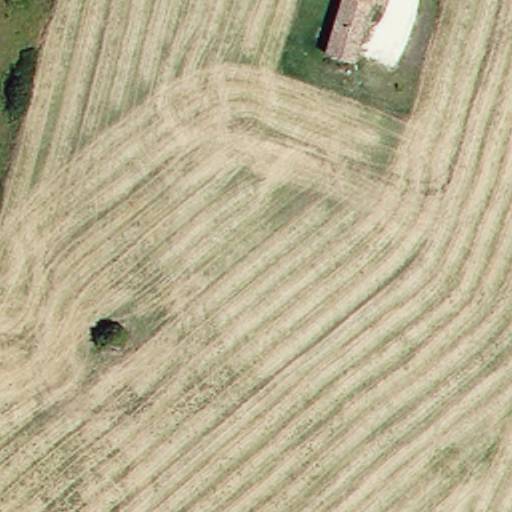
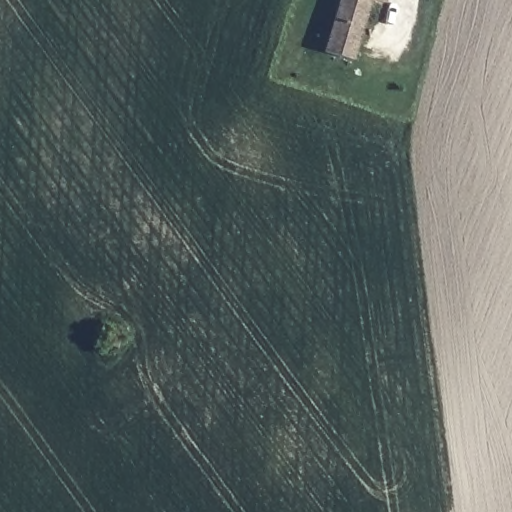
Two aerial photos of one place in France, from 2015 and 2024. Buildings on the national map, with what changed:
unchanged [(319,55),(335,0),(383,0),(381,7),(368,4),(348,63),(319,55)]

